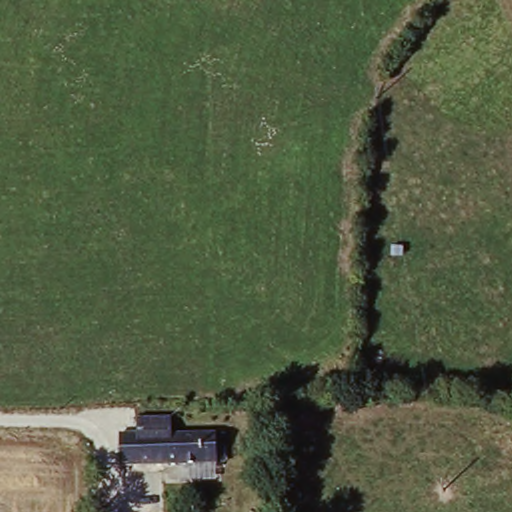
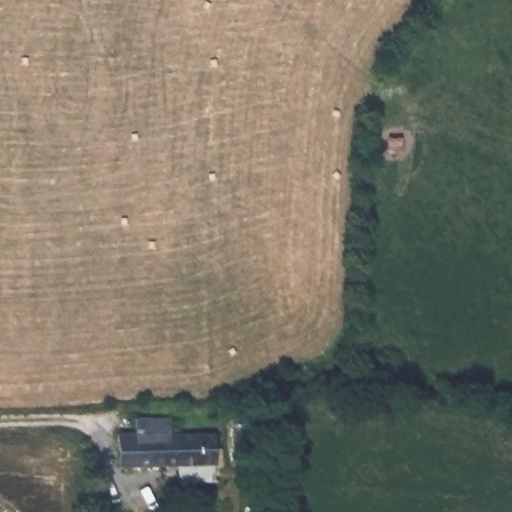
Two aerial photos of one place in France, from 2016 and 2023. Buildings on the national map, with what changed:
unchanged [(218,475),(122,477),(121,445),(139,445),(139,428),(177,429),(176,445),(219,445),(218,475)]

